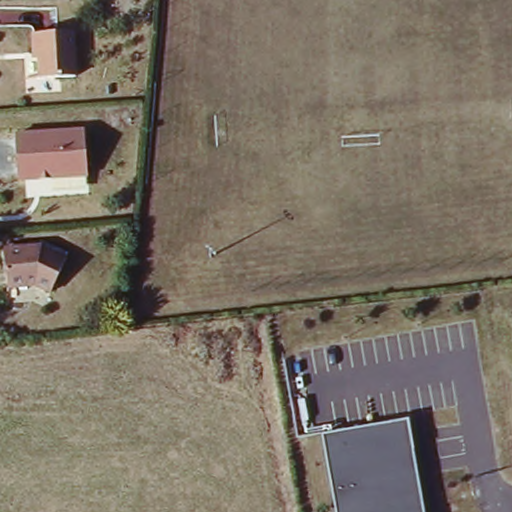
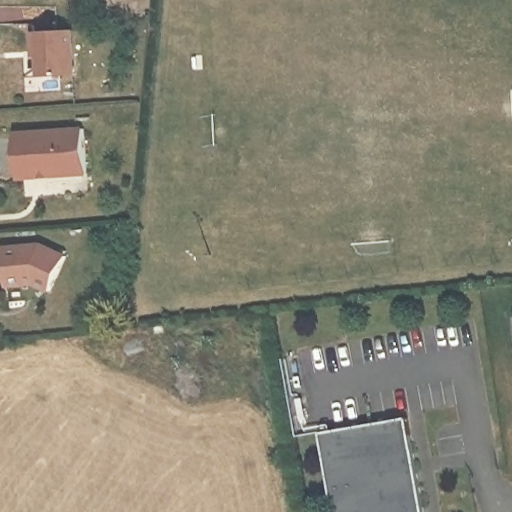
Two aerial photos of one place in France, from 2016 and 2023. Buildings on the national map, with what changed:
unchanged [(70,33),(73,78),(37,80),(35,53),(31,54),(31,35),(70,33)]
unchanged [(81,134),(85,181),(16,188),(11,139),(81,134)]
unchanged [(46,245),(69,256),(53,288),(40,283),(10,287),(6,250),(46,245)]
unchanged [(408,419),(424,512),(336,512),(322,434),(408,419)]

